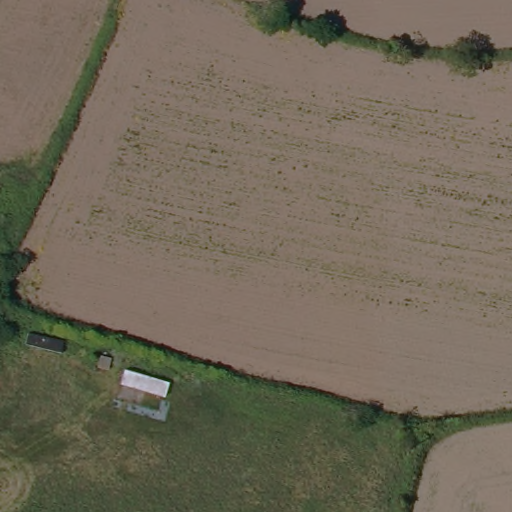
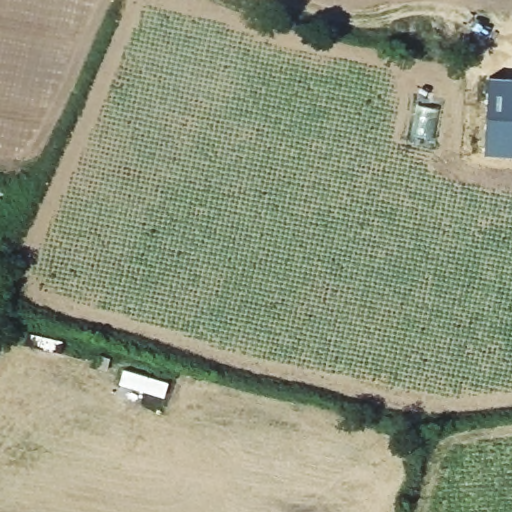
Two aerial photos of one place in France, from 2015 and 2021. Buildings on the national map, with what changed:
new [(486,152),(491,75),(512,76),(512,154),(486,152)]

